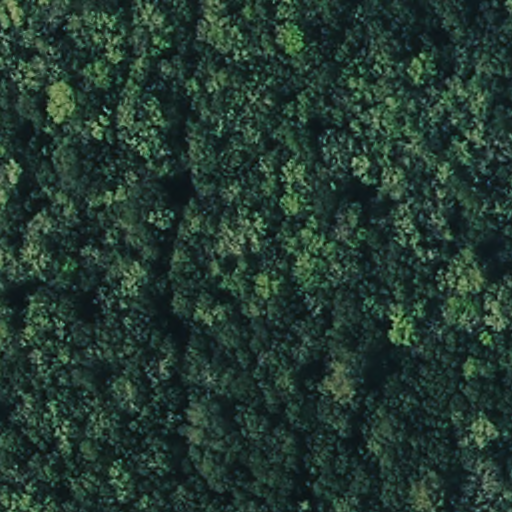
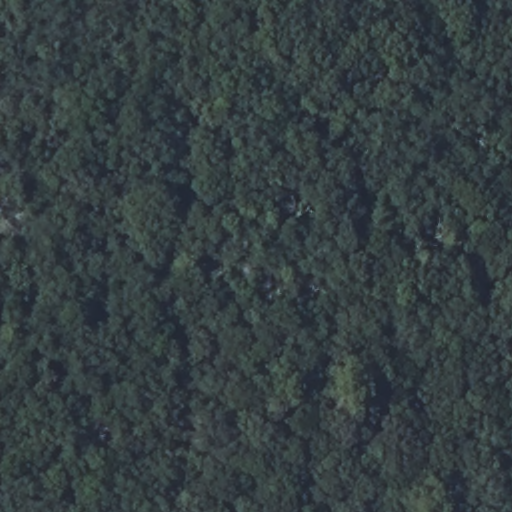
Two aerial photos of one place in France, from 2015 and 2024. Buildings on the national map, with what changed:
[]

